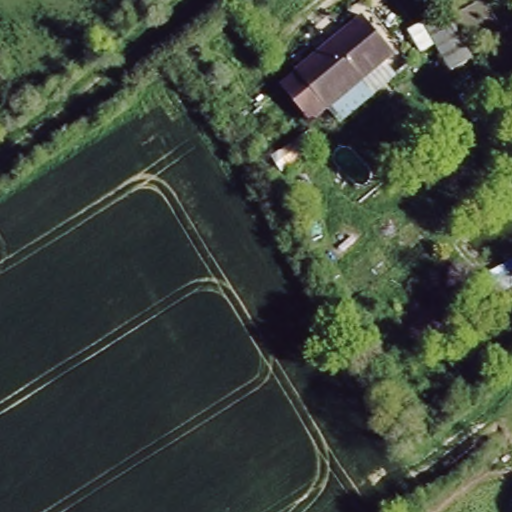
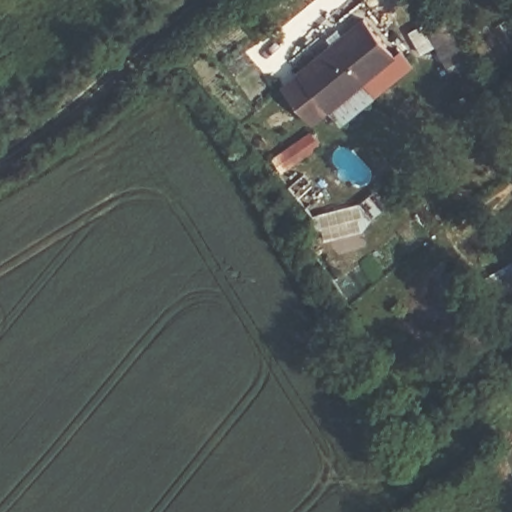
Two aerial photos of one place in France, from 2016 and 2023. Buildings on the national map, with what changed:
unchanged [(448,70),(423,29),(448,12),(471,54),(448,70)]
unchanged [(336,126),(320,103),(298,70),(295,66),(356,24),(381,61),(343,87),(359,110),(336,126)]
unchanged [(512,266),(512,324),(484,280),(512,266)]

